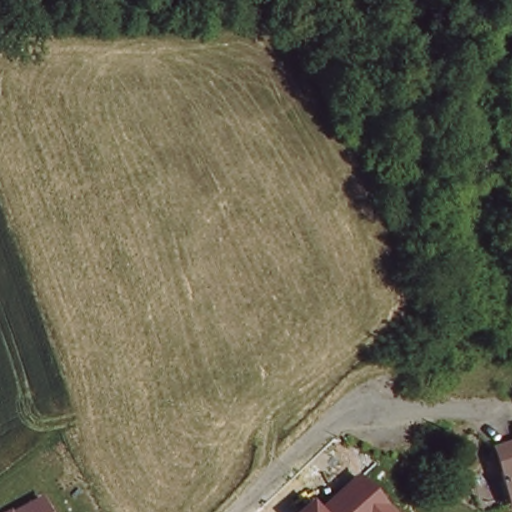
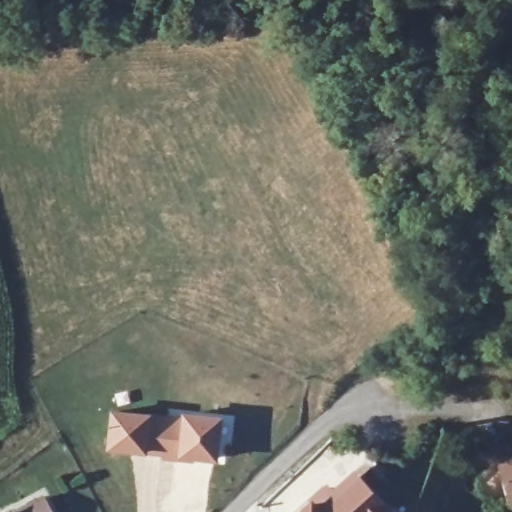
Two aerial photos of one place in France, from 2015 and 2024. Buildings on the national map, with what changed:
new [(110,409),(151,414),(181,417),(181,412),(222,417),(217,462),(195,459),(193,463),(160,460),(160,456),(146,454),(106,451),(110,409)]
unchanged [(505,491),(488,445),(498,440),(512,434),(512,488),(505,491)]
unchanged [(312,500),(318,507),(355,474),(391,512),(299,512),(312,500)]
unchanged [(512,508),(505,491),(512,488),(512,508)]
unchanged [(42,497),(48,512),(19,512),(42,497)]

